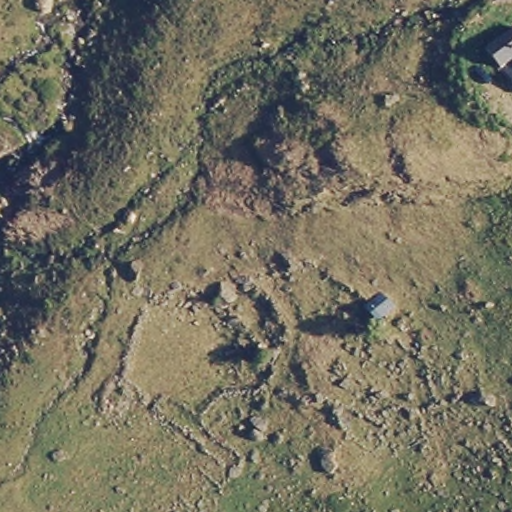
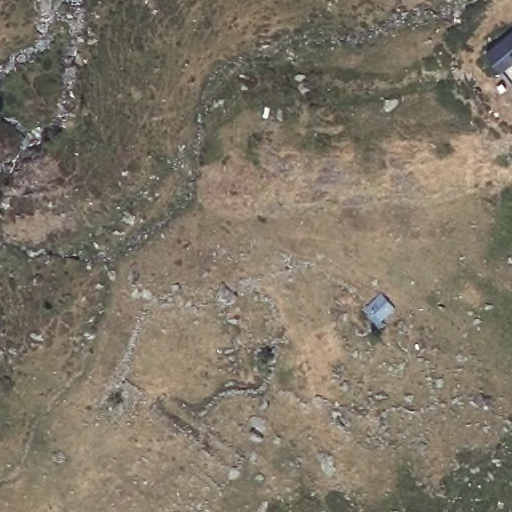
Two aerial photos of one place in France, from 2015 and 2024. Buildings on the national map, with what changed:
unchanged [(487,50),(512,32),(512,62),(500,70),(487,50)]
unchanged [(393,307),(378,321),(364,307),(379,292),(393,307)]

